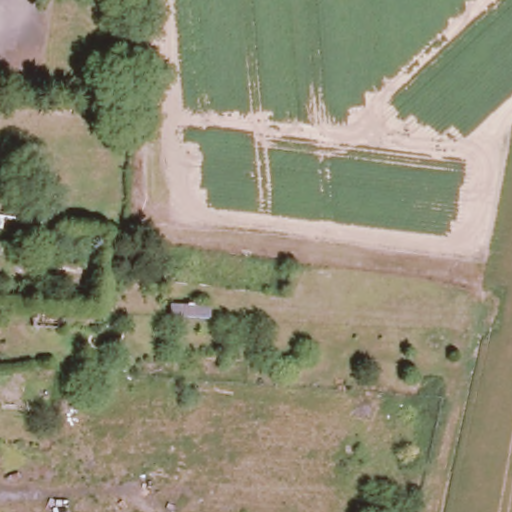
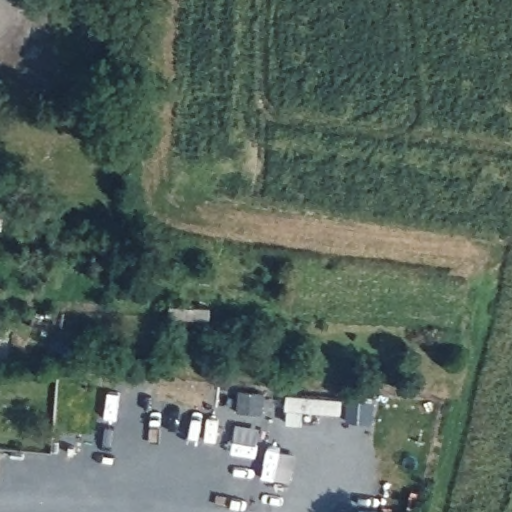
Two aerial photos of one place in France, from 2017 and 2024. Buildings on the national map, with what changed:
unchanged [(62,309),(61,326),(31,325),(32,308),(62,309)]

